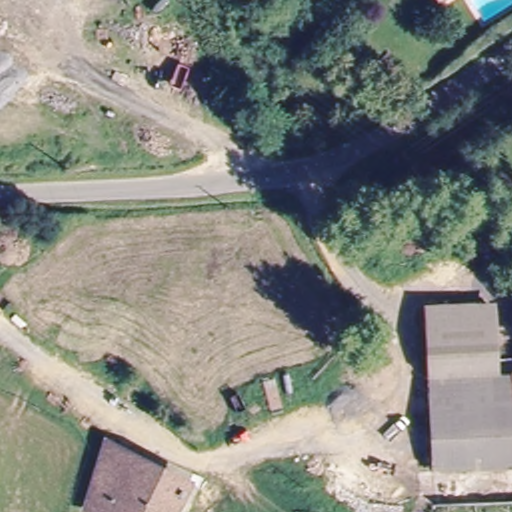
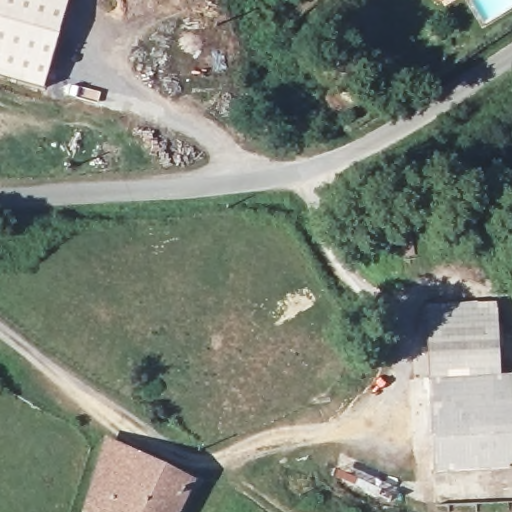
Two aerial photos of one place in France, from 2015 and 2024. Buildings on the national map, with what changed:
new [(0,76),(0,0),(67,0),(42,88),(0,76)]
unchanged [(428,298),(502,298),(505,373),(491,373),(432,371),(428,298)]
unchanged [(432,371),(491,373),(490,397),(512,396),(512,468),(461,469),(461,398),(432,397),(432,371)]
new [(512,373),(512,396),(490,397),(491,373),(505,373),(512,373)]
unchanged [(461,398),(461,469),(433,470),(432,397),(461,398)]
unchanged [(190,482),(179,512),(84,512),(104,448),(190,482)]

